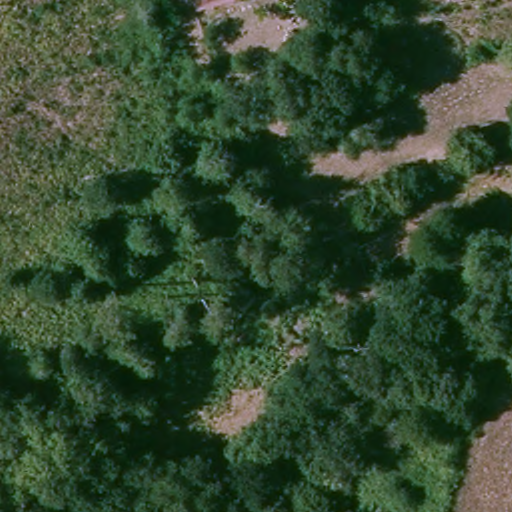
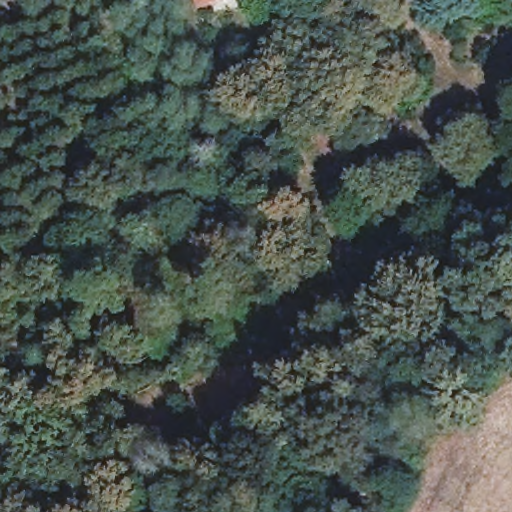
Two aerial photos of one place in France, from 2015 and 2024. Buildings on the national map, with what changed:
unchanged [(202,0),(230,0),(205,11),(202,0)]

